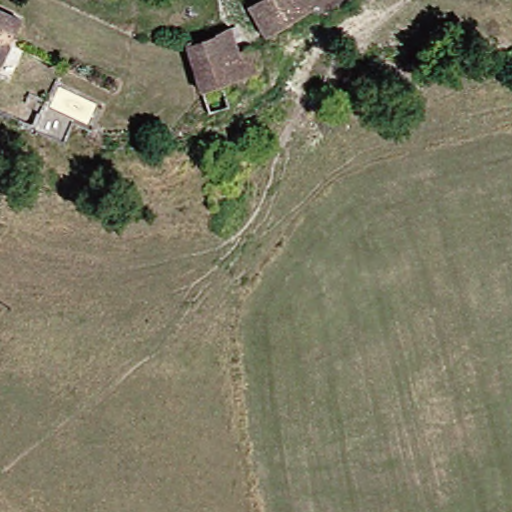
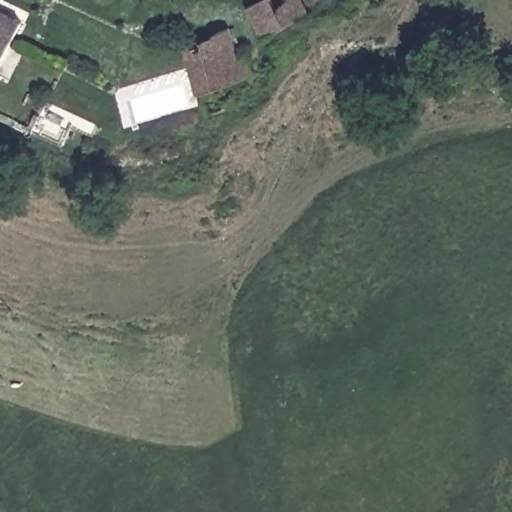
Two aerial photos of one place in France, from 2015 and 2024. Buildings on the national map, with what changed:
unchanged [(279,0),(320,0),(325,9),(280,37),(264,10),(279,0)]
unchanged [(30,18),(37,22),(33,32),(27,40),(0,27),(0,4),(30,18)]
unchanged [(195,39),(236,23),(245,47),(207,61),(205,59),(195,39)]
unchanged [(27,40),(3,96),(0,96),(0,27),(27,40)]
unchanged [(245,47),(256,44),(265,69),(217,86),(207,61),(245,47)]

